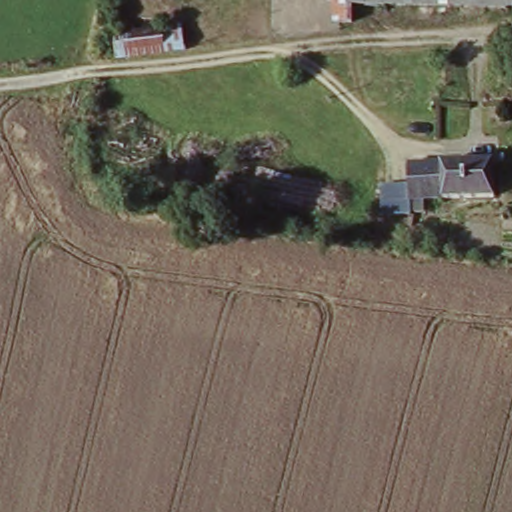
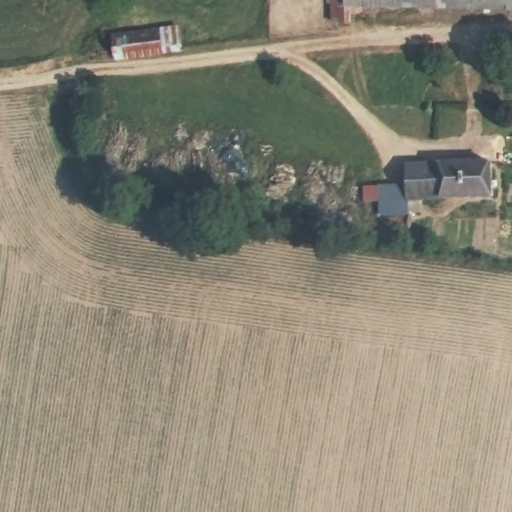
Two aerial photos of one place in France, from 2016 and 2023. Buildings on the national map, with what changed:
unchanged [(512,0),(512,12),(354,6),(354,27),(331,24),(331,0),(512,0)]
unchanged [(115,34),(184,28),(184,57),(115,63),(115,34)]
unchanged [(404,187),(404,165),(496,166),(495,199),(408,200),(407,222),(376,221),(375,187),(404,187)]

